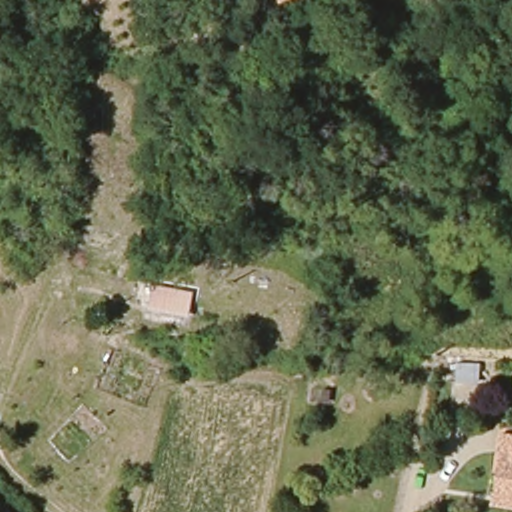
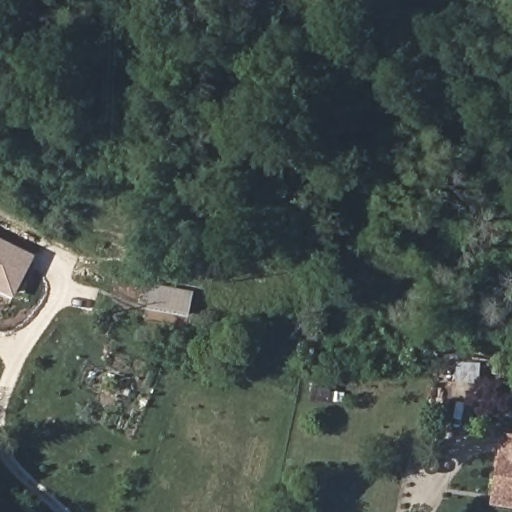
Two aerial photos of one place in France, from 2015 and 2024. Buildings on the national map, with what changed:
new [(14,300),(0,293),(0,240),(35,256),(14,300)]
unchanged [(195,301),(189,323),(151,315),(157,293),(195,301)]
unchanged [(502,436),(512,437),(512,509),(493,507),(495,496),(502,436)]

